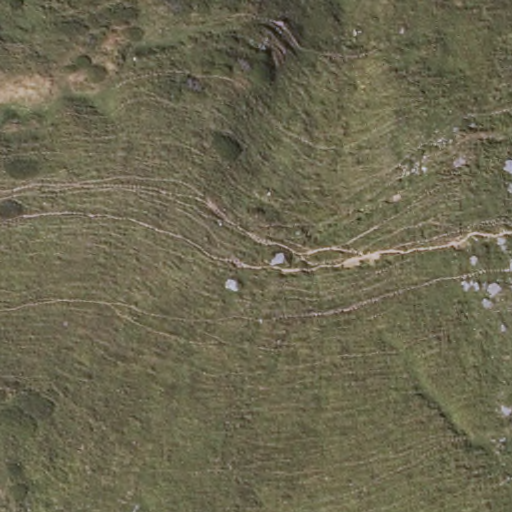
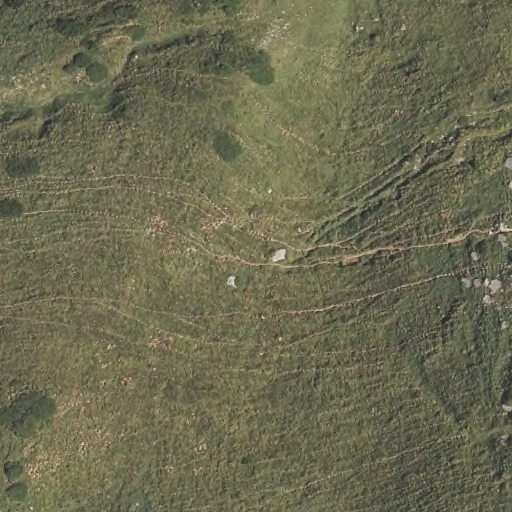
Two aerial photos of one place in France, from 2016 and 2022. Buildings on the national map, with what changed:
[]

